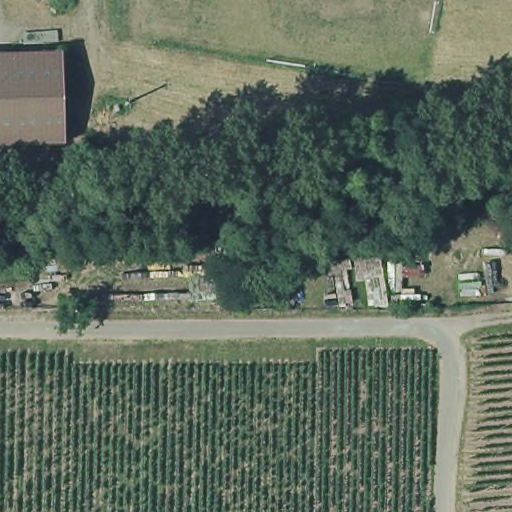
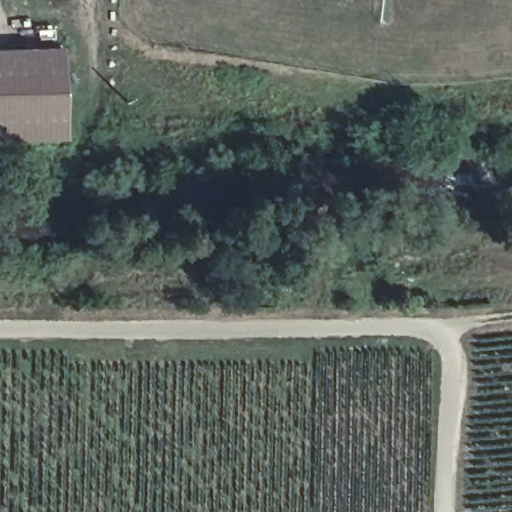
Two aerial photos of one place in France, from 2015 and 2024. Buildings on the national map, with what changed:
unchanged [(0,52),(65,51),(66,139),(0,141),(0,52)]

